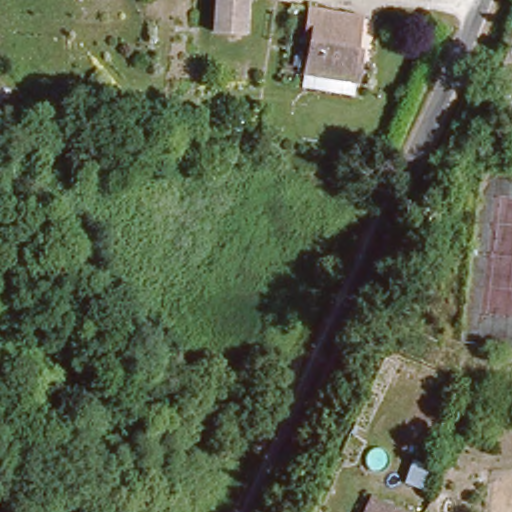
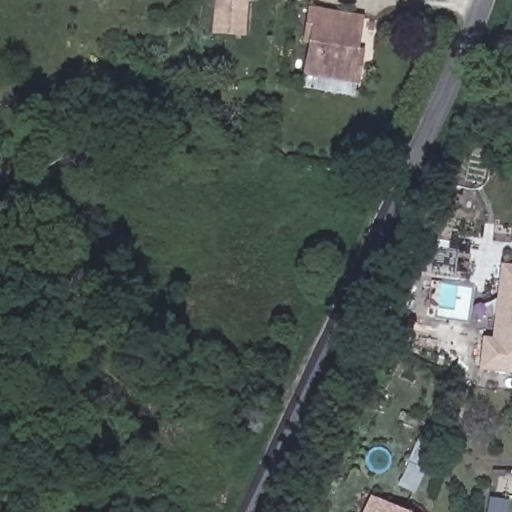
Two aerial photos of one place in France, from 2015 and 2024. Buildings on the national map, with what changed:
unchanged [(208,34),(211,0),(249,0),(247,35),(208,34)]
unchanged [(358,10),(355,57),(360,58),(360,75),(304,71),(306,39),(298,39),(300,23),(302,5),(358,10)]
new [(481,336),(502,267),(512,268),(512,372),(478,365),(481,336)]
unchanged [(411,512),(368,512),(374,497),(411,512)]

